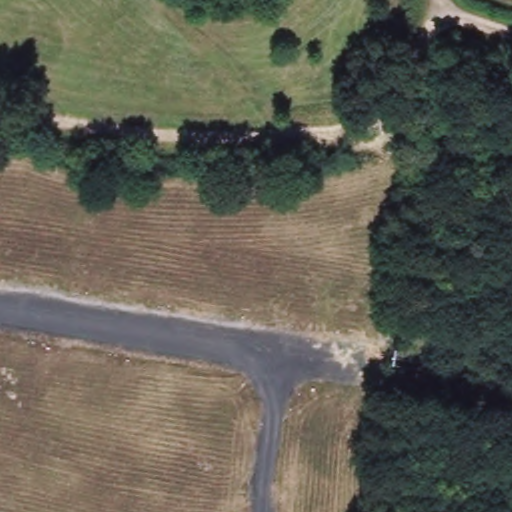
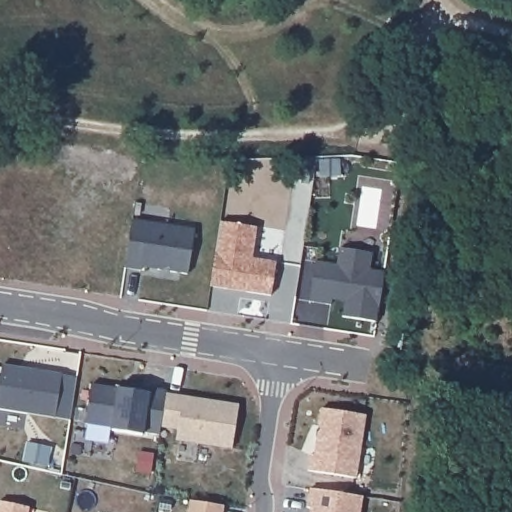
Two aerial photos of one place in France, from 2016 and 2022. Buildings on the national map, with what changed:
new [(132,220),(194,230),(187,274),(141,266),(140,270),(125,268),(132,220)]
new [(315,261),(337,265),(340,248),(372,253),(369,270),(384,272),(376,322),(342,316),(345,297),(332,295),(331,305),(309,301),(315,261)]
new [(61,375),(55,417),(0,409),(0,379),(2,365),(61,375)]
new [(143,432),(143,435),(111,430),(111,427),(85,423),(91,385),(131,390),(132,385),(166,390),(165,395),(239,406),(232,448),(176,440),(159,437),(159,435),(143,432)]
new [(357,478),(307,471),(309,455),(314,455),(320,408),(365,415),(357,478)]
new [(310,509),(306,509),(309,488),(360,497),(359,512),(310,512),(310,509)]
new [(190,500),(223,506),(223,512),(188,512),(190,500)]
new [(29,512),(0,512),(0,502),(30,508),(29,512)]

